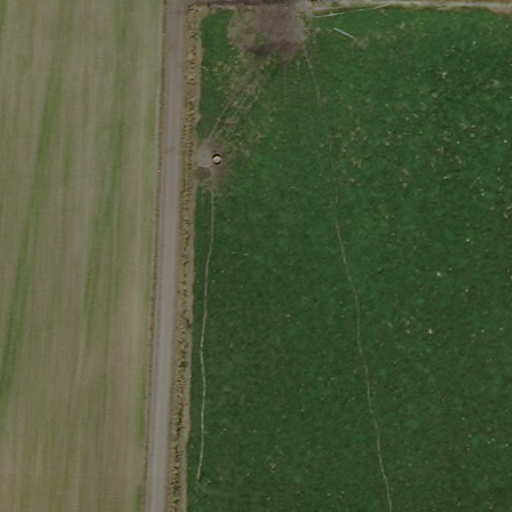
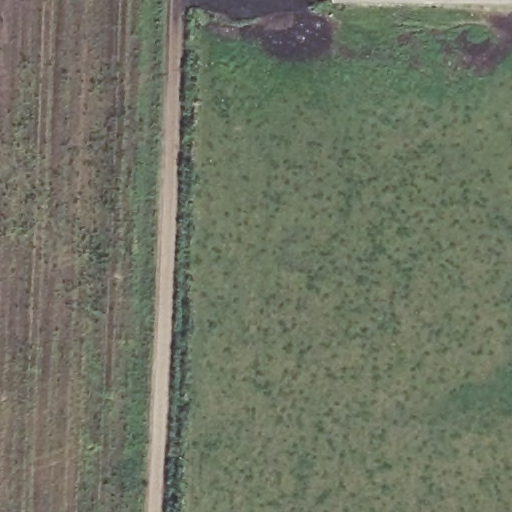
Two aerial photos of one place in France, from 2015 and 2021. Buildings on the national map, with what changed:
unchanged [(439,0),(512,0),(512,3),(439,0)]

